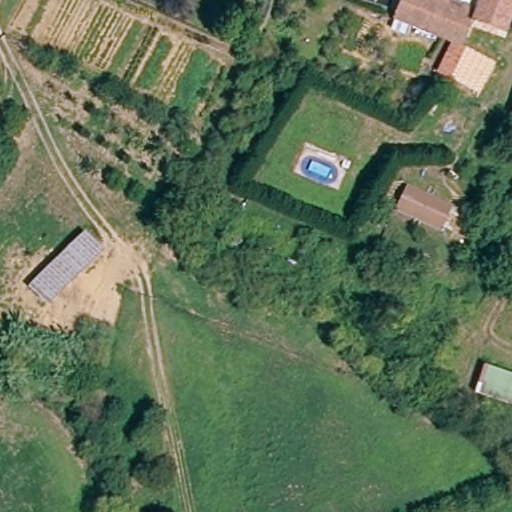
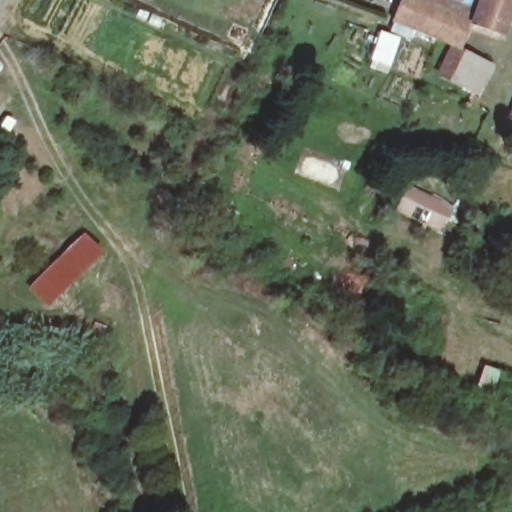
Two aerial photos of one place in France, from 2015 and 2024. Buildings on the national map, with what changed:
unchanged [(421,0),(471,19),(462,45),(459,49),(394,24),(395,20),(403,0),(421,0)]
unchanged [(472,25),(479,0),(512,0),(501,35),(472,25)]
unchanged [(476,90),(440,74),(453,48),(479,60),(489,65),(487,67),(476,90)]
unchanged [(394,212),(404,186),(457,206),(442,237),(394,212)]
unchanged [(48,306),(31,288),(88,234),(105,252),(48,306)]
unchanged [(476,388),(485,363),(512,374),(512,403),(476,388)]

